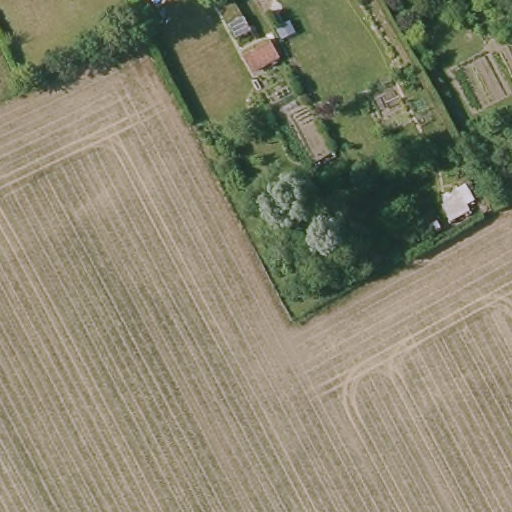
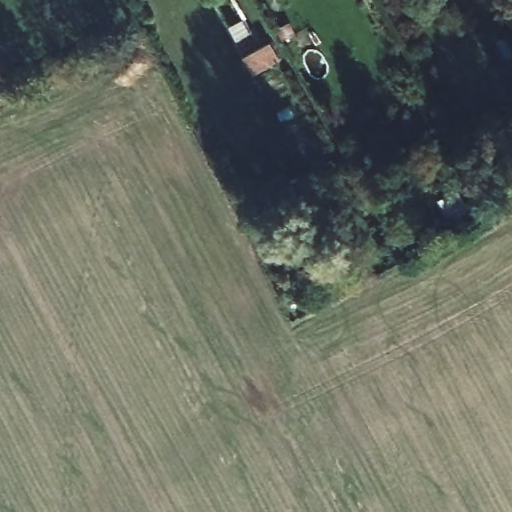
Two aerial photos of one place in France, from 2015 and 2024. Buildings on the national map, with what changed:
unchanged [(244,19),(251,33),(236,41),(228,28),(244,19)]
unchanged [(280,60),(252,75),(242,58),(270,43),(280,60)]

